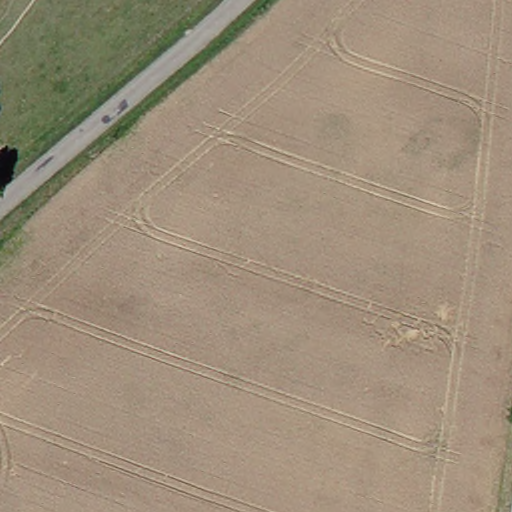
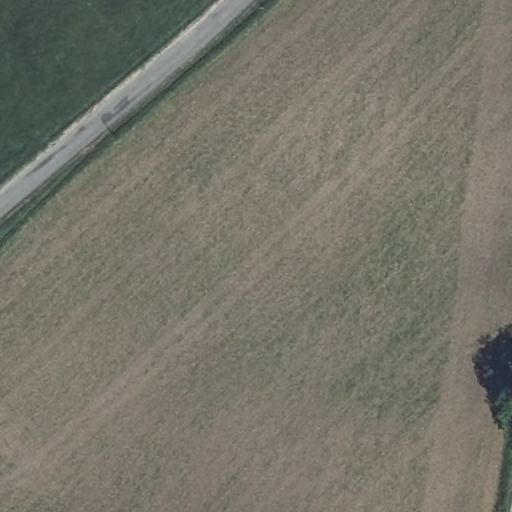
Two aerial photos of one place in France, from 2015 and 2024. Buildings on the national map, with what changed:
[]

